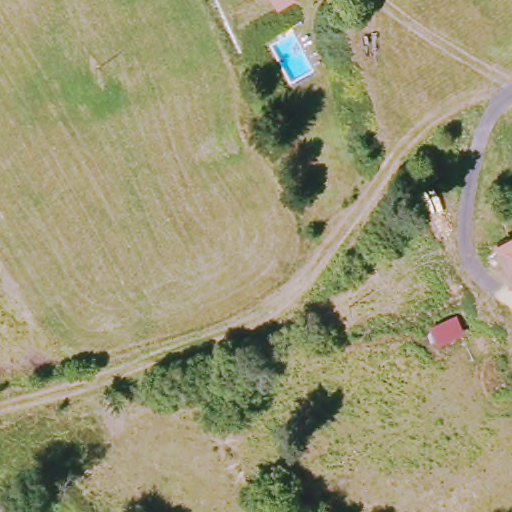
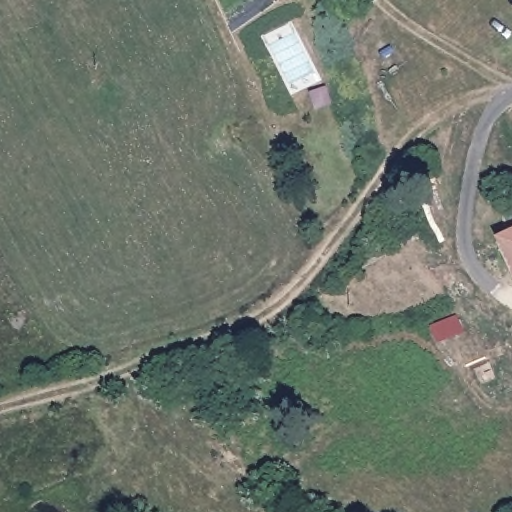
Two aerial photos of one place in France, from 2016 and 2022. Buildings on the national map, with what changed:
unchanged [(271,0),(292,0),(278,10),(271,0)]
unchanged [(512,233),(512,278),(508,280),(505,274),(491,243),(512,233)]

